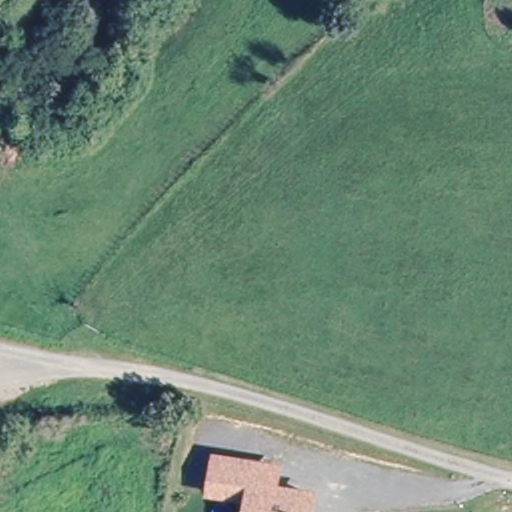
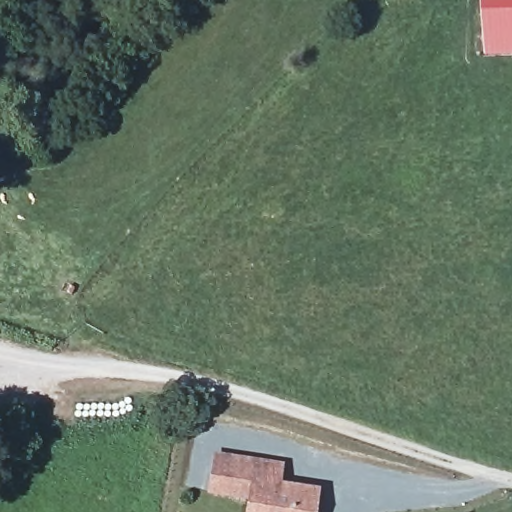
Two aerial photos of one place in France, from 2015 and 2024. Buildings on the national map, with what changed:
new [(485,55),(484,0),(512,0),(512,54),(485,55)]
unchanged [(279,483),(319,490),(315,512),(243,512),(245,500),(206,495),(213,450),(282,463),(279,483)]

